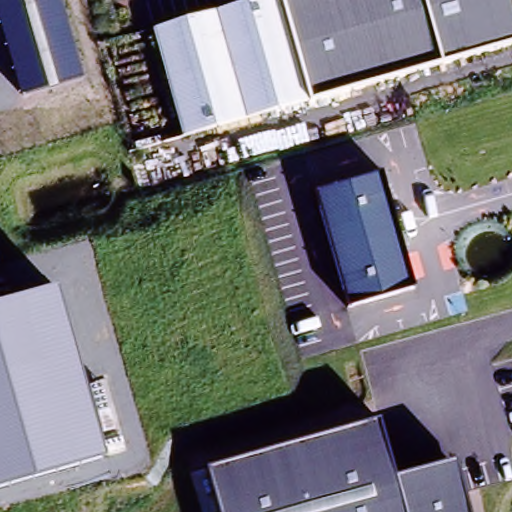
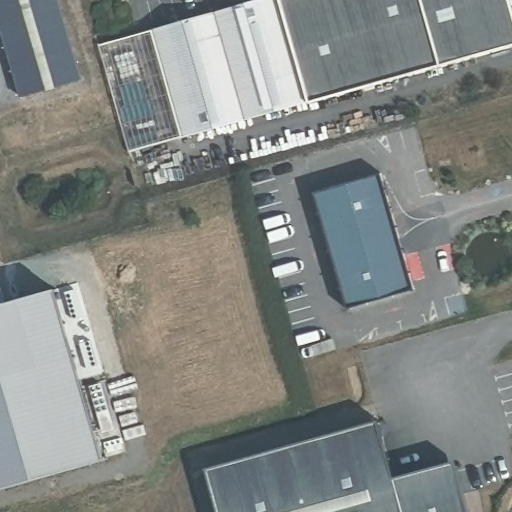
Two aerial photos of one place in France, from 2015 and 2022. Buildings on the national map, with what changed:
unchanged [(0,0),(58,0),(82,81),(19,98),(0,36),(0,0)]
unchanged [(258,0),(277,0),(307,104),(182,138),(152,29),(258,0)]
unchanged [(512,11),(512,47),(307,104),(277,0),(509,0),(512,11)]
unchanged [(380,174),(414,289),(347,309),(312,192),(380,174)]
unchanged [(104,461),(0,490),(0,305),(55,289),(104,461)]
unchanged [(392,479),(453,463),(467,512),(218,512),(206,469),(376,422),(392,479)]

